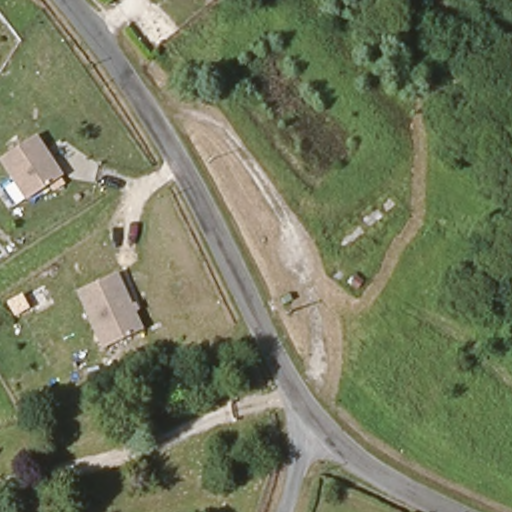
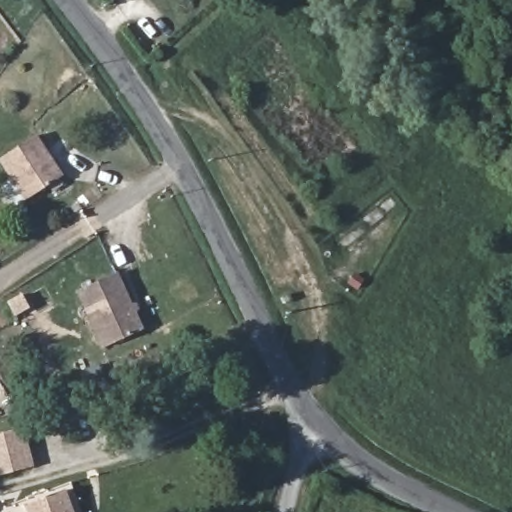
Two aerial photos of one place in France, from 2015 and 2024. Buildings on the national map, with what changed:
unchanged [(36,136),(60,177),(22,200),(0,166),(0,158),(36,136)]
unchanged [(113,272),(140,328),(102,345),(77,291),(113,272)]
new [(26,427),(34,467),(0,476),(0,434),(26,427)]
new [(22,505),(65,489),(73,512),(25,512),(22,505)]

